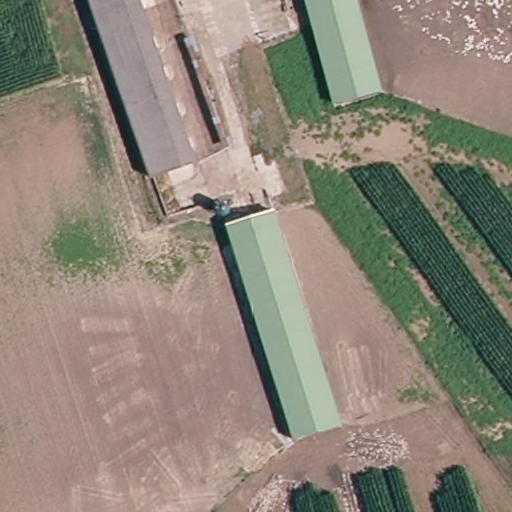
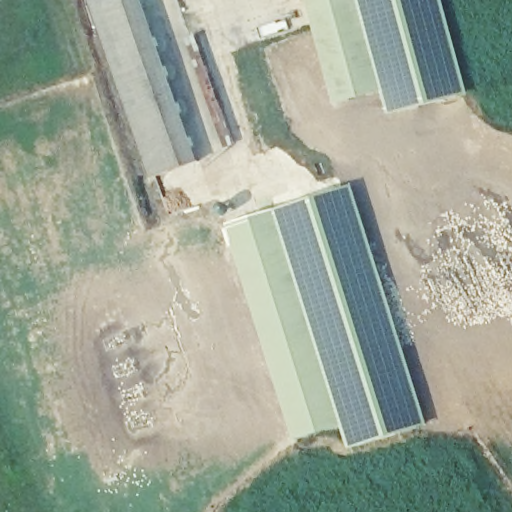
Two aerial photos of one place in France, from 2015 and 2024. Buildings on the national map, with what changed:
unchanged [(196,165),(160,178),(93,0),(133,0),(196,165)]
unchanged [(383,93),(338,106),(308,0),(356,0),(383,93)]
new [(467,93),(389,114),(383,93),(356,0),(442,0),(467,93)]
new [(343,424),(272,209),(352,183),(427,424),(349,449),(342,425),(343,424)]
unchanged [(343,424),(299,439),(228,223),(272,209),(343,424)]

